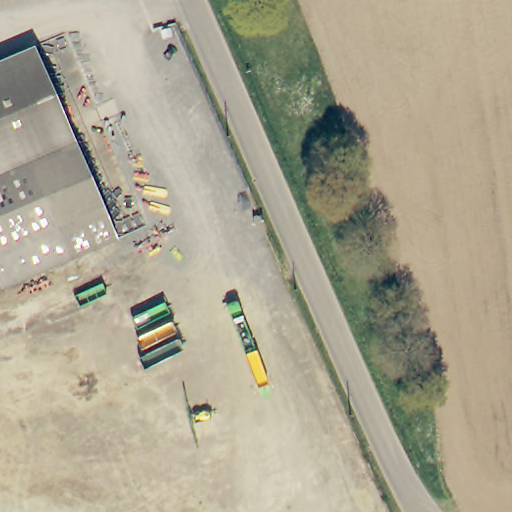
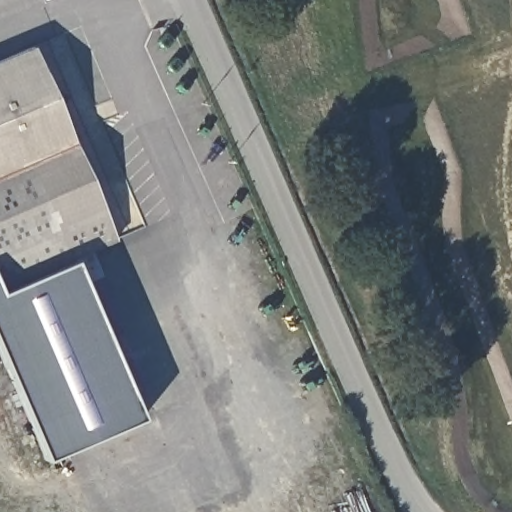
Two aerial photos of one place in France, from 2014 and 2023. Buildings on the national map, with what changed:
unchanged [(115,240),(1,289),(0,287),(0,59),(30,46),(115,240)]
new [(75,256),(142,420),(47,460),(0,347),(0,287),(1,289),(75,256)]

